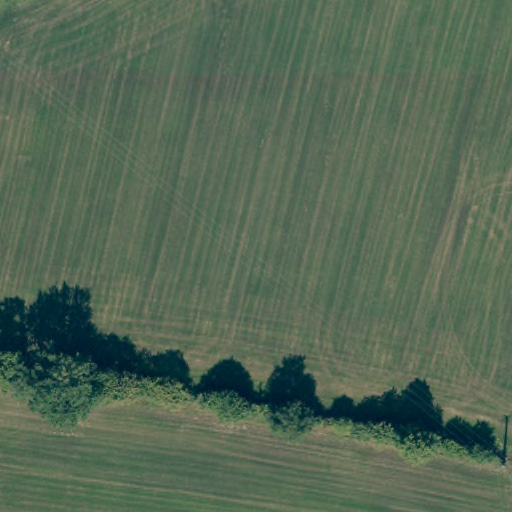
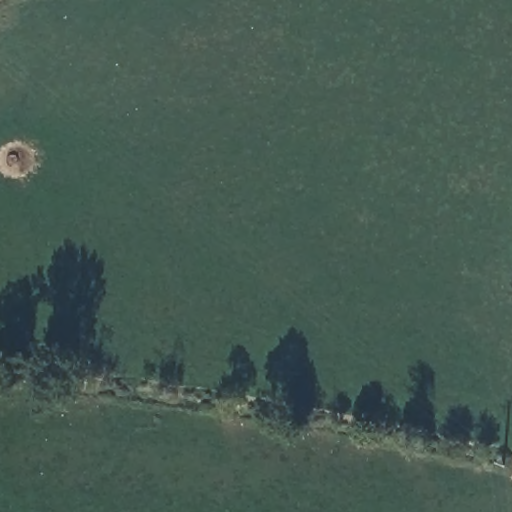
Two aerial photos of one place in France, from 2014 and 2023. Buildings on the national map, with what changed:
[]

